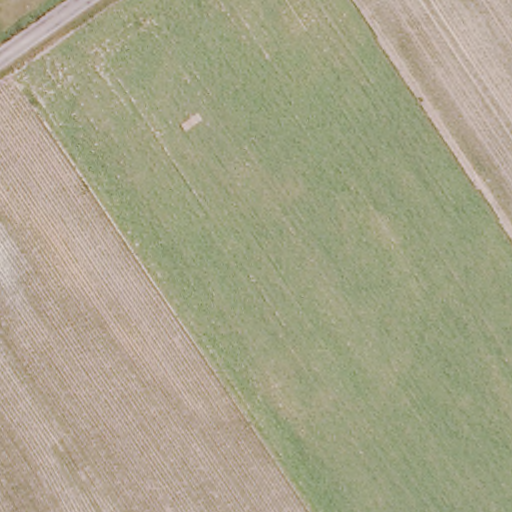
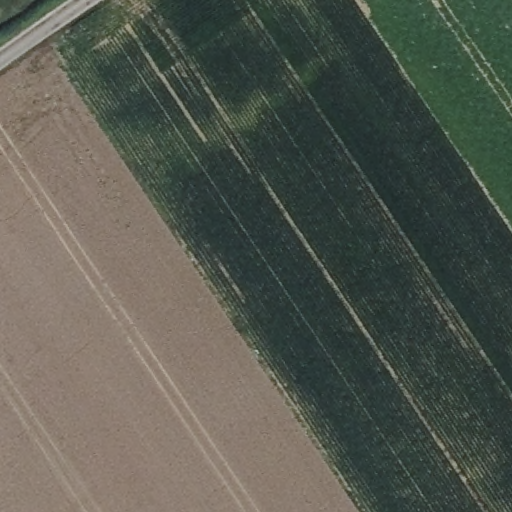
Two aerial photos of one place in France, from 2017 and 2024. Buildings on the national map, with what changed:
[]

